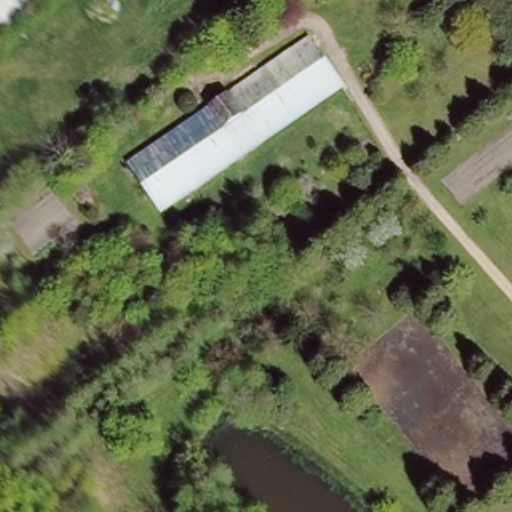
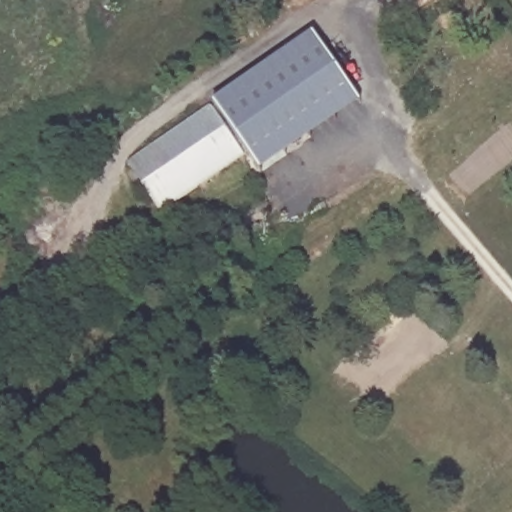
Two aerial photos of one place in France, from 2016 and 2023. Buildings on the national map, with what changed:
demolished [(0,0),(43,0),(0,30),(0,0)]
unchanged [(131,159),(312,35),(327,58),(146,182),(131,159)]
unchanged [(327,58),(345,84),(164,207),(146,182),(327,58)]

